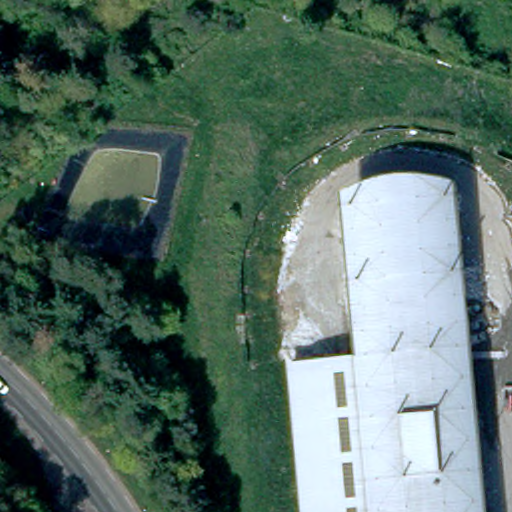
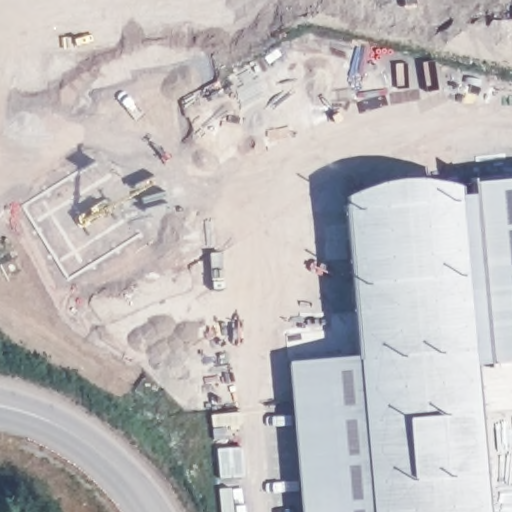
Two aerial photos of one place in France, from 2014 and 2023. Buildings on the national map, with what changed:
unchanged [(484,512),(299,512),(281,361),(350,354),(341,193),(371,181),(382,178),(392,176),(401,175),(412,174),(423,174),(431,176),(452,180),(484,512)]
new [(472,194),(469,181),(512,178),(512,360),(470,364),(454,196),(472,194)]

